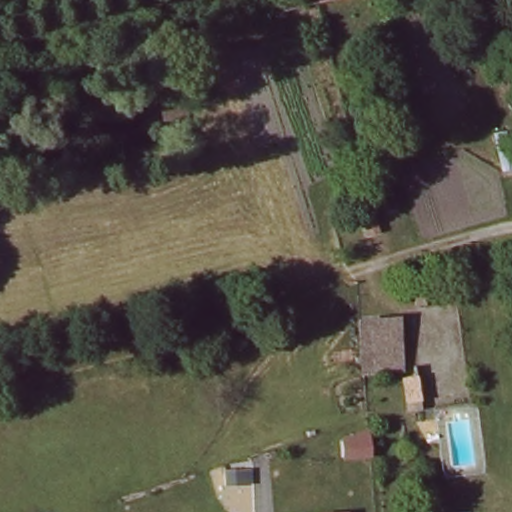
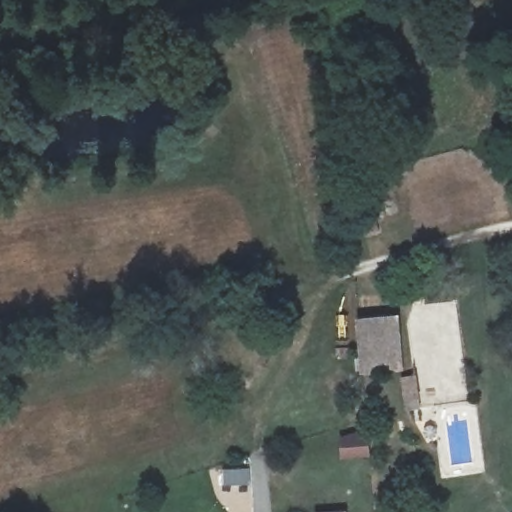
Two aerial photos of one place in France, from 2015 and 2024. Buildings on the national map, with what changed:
unchanged [(366,239),(347,187),(366,182),(379,231),(366,239)]
unchanged [(357,320),(400,316),(404,368),(363,372),(357,320)]

